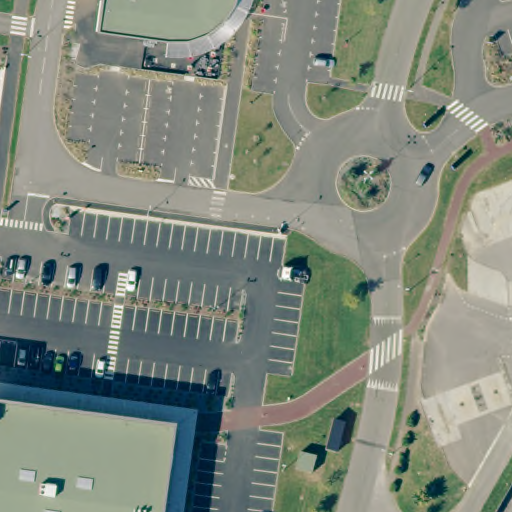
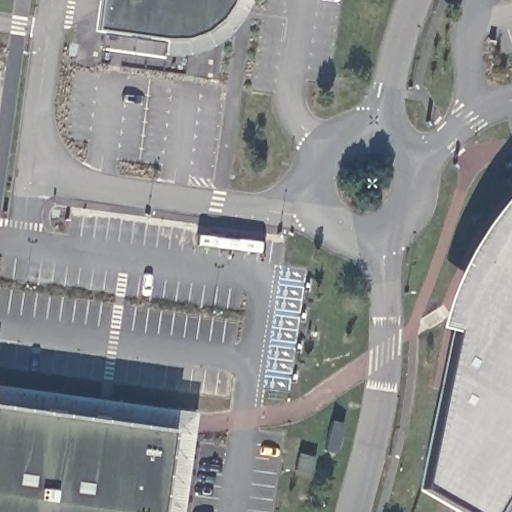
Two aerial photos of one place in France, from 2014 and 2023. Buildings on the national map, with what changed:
unchanged [(213,30),(196,38),(179,39),(159,39),(96,31),(101,0),(234,0),(226,16),(213,30)]
new [(496,512),(460,512),(420,489),(454,333),(435,330),(444,297),(464,253),(499,203),(512,190),(512,484),(496,512)]
unchanged [(0,408),(172,431),(161,512),(0,512),(0,408)]
new [(331,421),(342,424),(335,452),(323,449),(331,421)]

